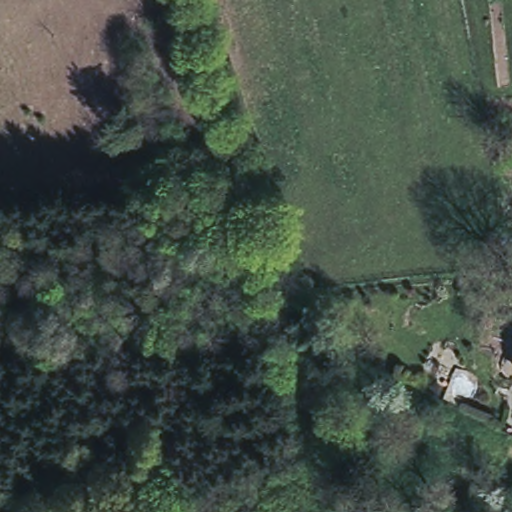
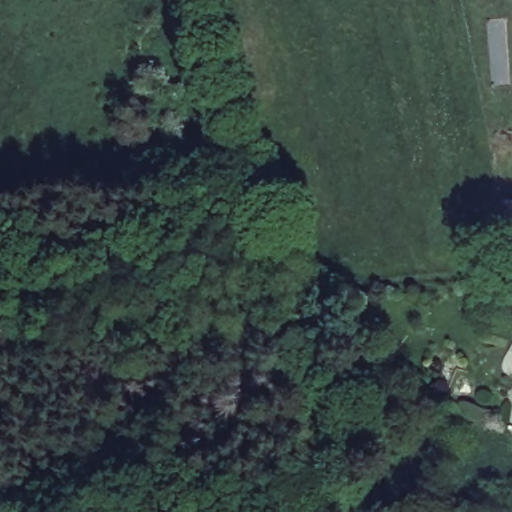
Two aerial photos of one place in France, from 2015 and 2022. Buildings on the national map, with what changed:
[]

